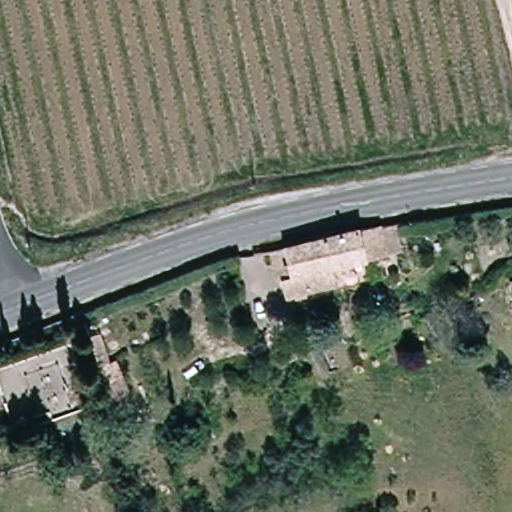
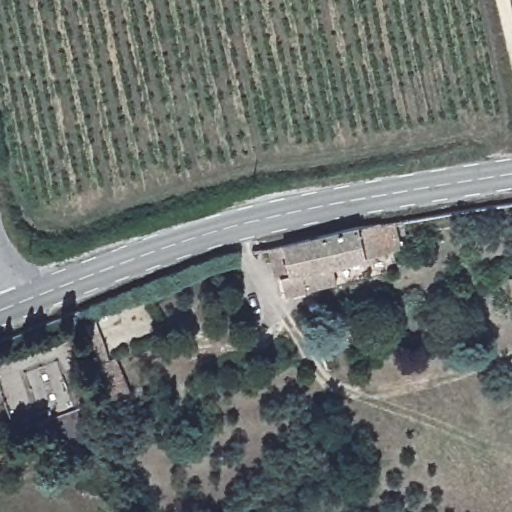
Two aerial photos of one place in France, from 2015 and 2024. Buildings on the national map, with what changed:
unchanged [(386,247),(363,251),(363,255),(306,268),(303,256),(286,260),(281,241),(380,221),(386,247)]
unchanged [(308,291),(286,298),(281,275),(303,270),(308,291)]
unchanged [(510,280),(512,280),(512,288),(510,280)]

